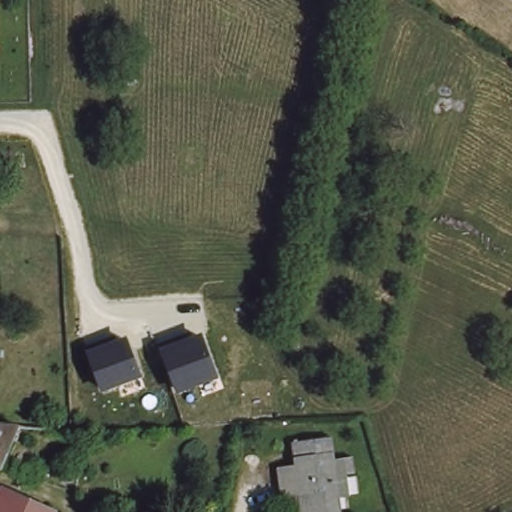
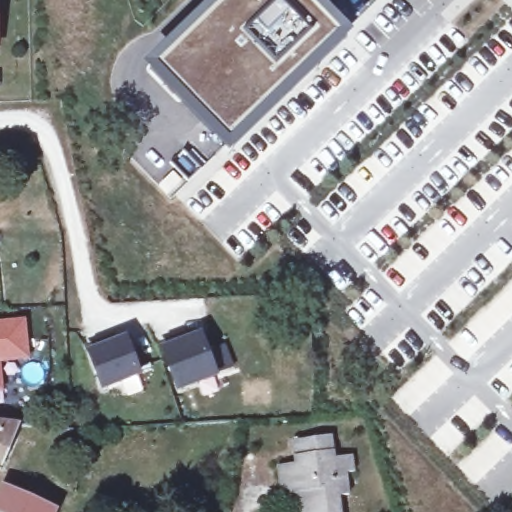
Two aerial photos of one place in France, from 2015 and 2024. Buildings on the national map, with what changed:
new [(218,0),(304,0),(339,34),(222,145),(148,71),(218,0)]
unchanged [(0,56),(0,38),(2,56),(0,56)]
new [(30,359),(2,363),(4,392),(0,392),(0,319),(26,316),(30,359)]
unchanged [(226,346),(235,370),(215,377),(175,392),(159,350),(200,335),(207,353),(226,346)]
unchanged [(143,375),(101,390),(87,354),(127,337),(143,375)]
unchanged [(0,425),(12,426),(0,456),(0,425)]
unchanged [(348,459),(351,475),(343,477),(345,496),(339,498),(341,512),(299,512),(297,499),(280,501),(278,470),(292,466),(289,443),(326,436),(332,461),(348,459)]
unchanged [(0,492),(2,488),(51,512),(1,512),(0,511),(0,492)]

